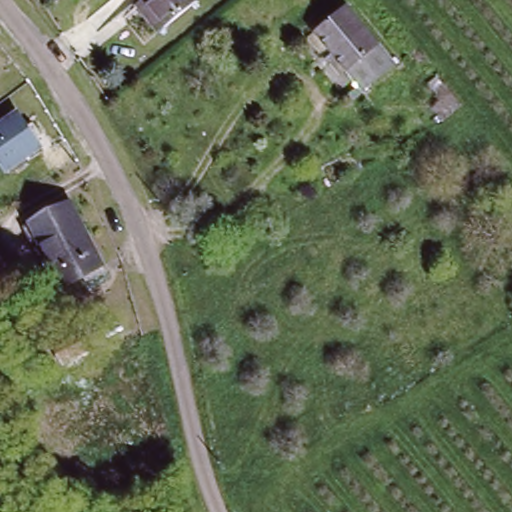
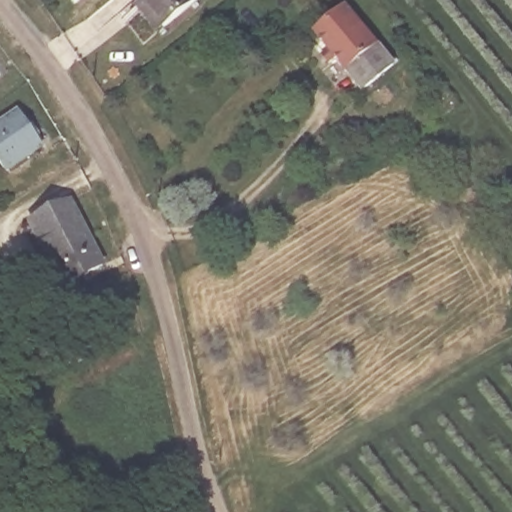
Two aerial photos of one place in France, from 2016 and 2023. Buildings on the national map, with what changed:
unchanged [(165,22),(155,30),(135,4),(140,0),(193,0),(165,22)]
unchanged [(352,1),(399,60),(368,84),(341,52),(333,59),(327,51),(336,45),(321,26),(352,1)]
unchanged [(43,147),(10,169),(0,153),(0,125),(21,112),(43,147)]
unchanged [(73,202),(104,266),(64,285),(33,222),(73,202)]
unchanged [(71,337),(82,356),(58,367),(49,349),(71,337)]

